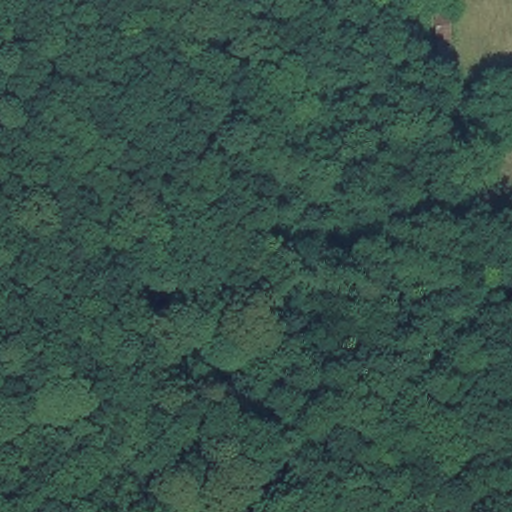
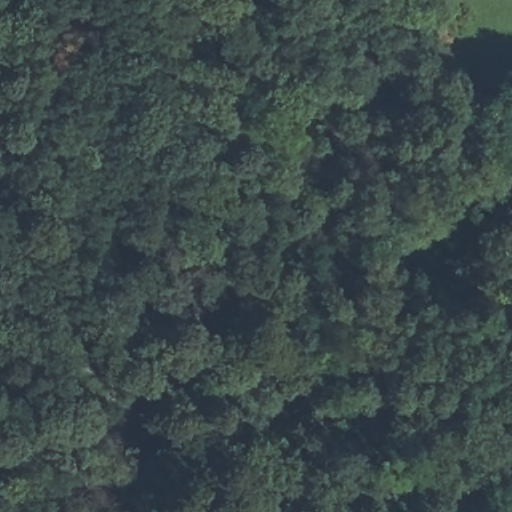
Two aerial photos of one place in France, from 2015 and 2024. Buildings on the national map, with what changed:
unchanged [(449,15),(452,41),(435,41),(433,14),(449,15)]
unchanged [(452,50),(453,84),(437,85),(434,52),(452,50)]

